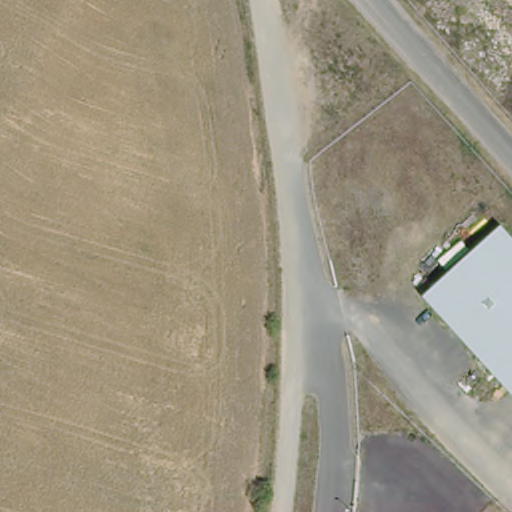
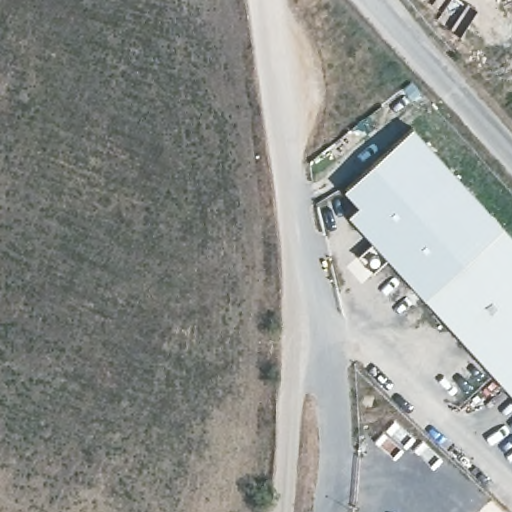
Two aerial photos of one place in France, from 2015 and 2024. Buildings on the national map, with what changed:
new [(350,214),(360,205),(345,189),(413,126),(503,225),(423,297),(350,214)]
unchanged [(512,235),(512,395),(423,297),(503,225),(512,235)]

